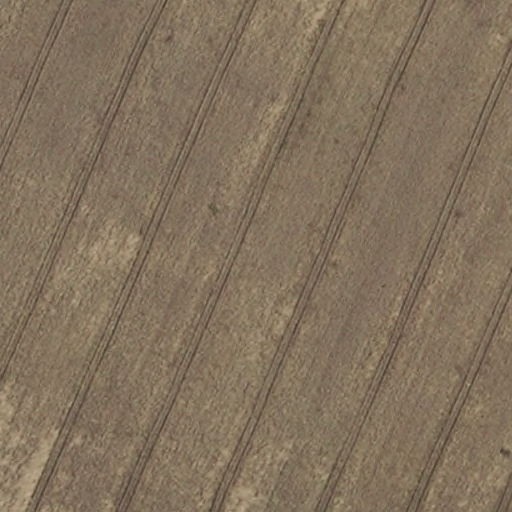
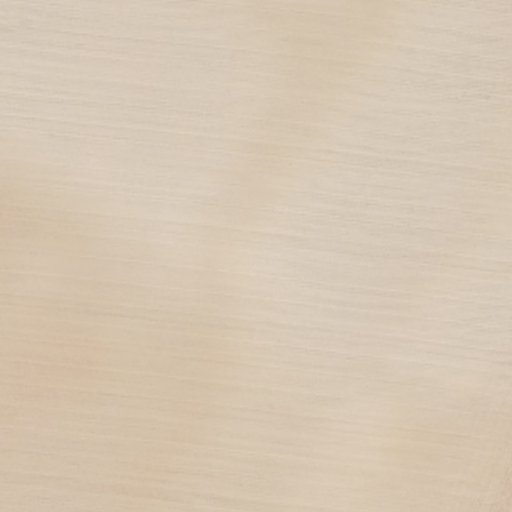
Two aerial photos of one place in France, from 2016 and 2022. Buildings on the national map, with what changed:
[]

